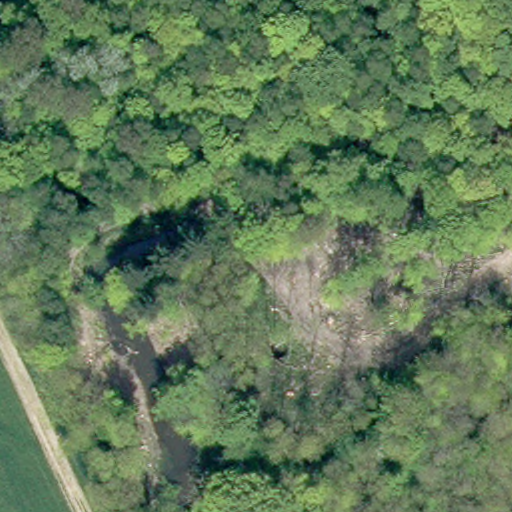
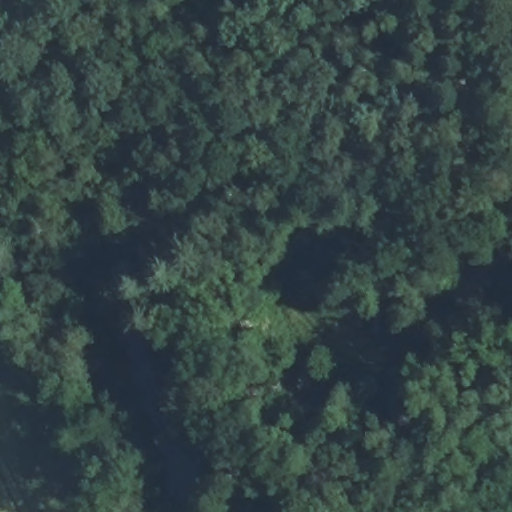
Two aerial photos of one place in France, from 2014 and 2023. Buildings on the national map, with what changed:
unchanged [(173,257),(296,492),(512,454),(512,512),(241,512),(95,248),(151,108),(167,116),(221,195),(173,257)]

